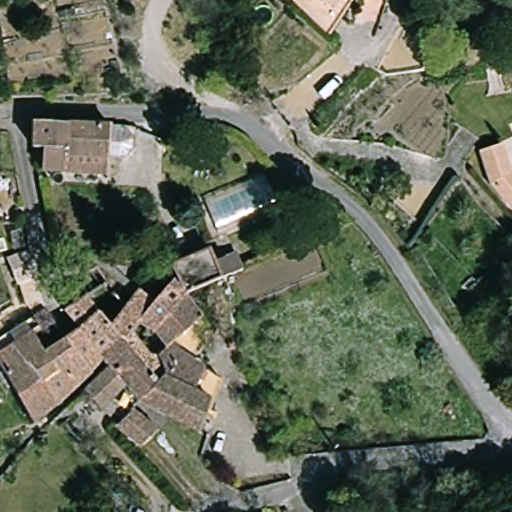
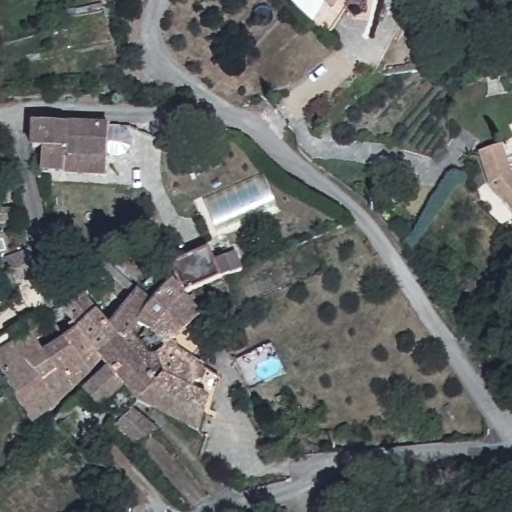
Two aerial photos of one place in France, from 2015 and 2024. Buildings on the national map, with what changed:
unchanged [(333,15),(315,10),(314,0),(343,0),(333,15)]
unchanged [(127,125),(131,129),(135,136),(133,144),(130,149),(124,153),(118,155),(110,155),(109,170),(49,167),(50,145),(40,145),(42,121),(111,124),(127,125)]
unchanged [(472,151),(494,143),(503,165),(512,176),(512,209),(484,174),(472,151)]
unchanged [(184,298),(173,270),(206,255),(217,249),(235,243),(244,270),(241,270),(226,277),(223,279),(184,298)]
unchanged [(172,283),(184,298),(140,400),(102,358),(150,305),(172,283)]
unchanged [(134,288),(150,305),(102,358),(75,326),(65,314),(85,298),(105,322),(134,288)]
unchanged [(207,397),(198,427),(140,400),(184,298),(201,317),(200,340),(193,361),(202,368),(225,381),(218,403),(207,397)]
unchanged [(29,331),(40,351),(75,326),(102,358),(140,400),(137,396),(103,363),(99,368),(95,365),(30,424),(0,372),(0,349),(29,331)]
unchanged [(119,392),(100,410),(78,390),(99,368),(103,363),(137,396),(133,409),(119,392)]
unchanged [(117,424),(133,410),(152,428),(137,444),(117,424)]

